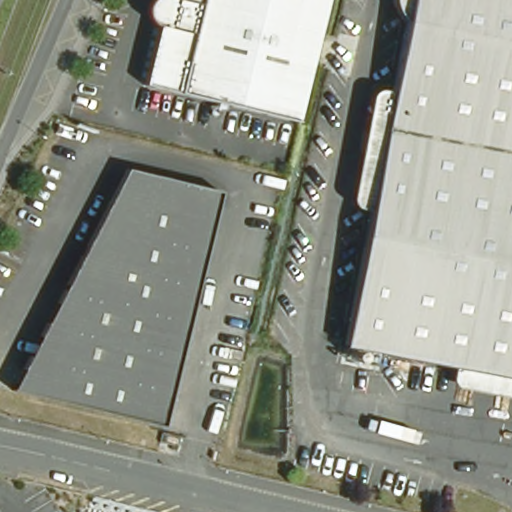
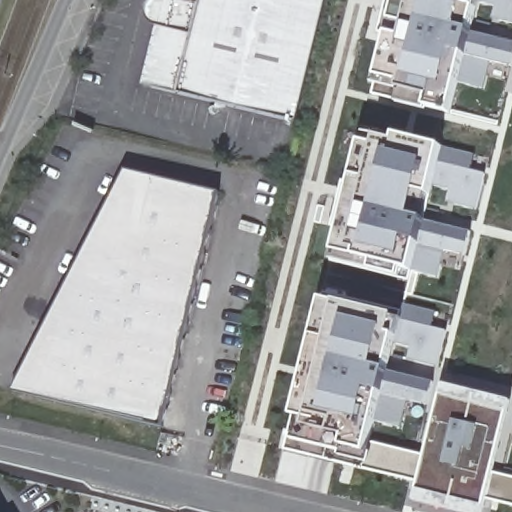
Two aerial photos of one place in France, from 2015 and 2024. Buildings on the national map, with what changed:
unchanged [(153,29),(151,28),(151,27),(149,23),(149,16),(151,12),(154,8),(155,7),(158,5),(164,4),(168,4),(169,0),(330,0),(300,129),(172,99),(146,93),(161,34),(158,34),(155,31),(153,29)]
demolished [(349,358),(416,0),(512,0),(512,388),(349,358)]
new [(491,18),(487,33),(512,39),(512,64),(474,55),(465,91),(385,73),(402,0),(512,0),(512,23),(491,18)]
new [(410,138),(411,134),(474,151),(471,166),(485,169),(476,208),(438,198),(434,219),(471,229),(466,254),(433,247),(428,272),(342,250),(373,129),(410,138)]
unchanged [(125,175),(146,180),(219,198),(177,376),(163,434),(13,397),(125,175)]
new [(399,312),(400,302),(430,310),(426,325),(442,329),(435,364),(408,357),(404,374),(435,379),(429,403),(399,397),(387,447),(423,453),(434,456),(449,383),(512,398),(512,431),(502,476),(512,478),(512,503),(495,499),(493,512),(466,512),(422,499),(425,482),(298,452),(336,298),(399,312)]

